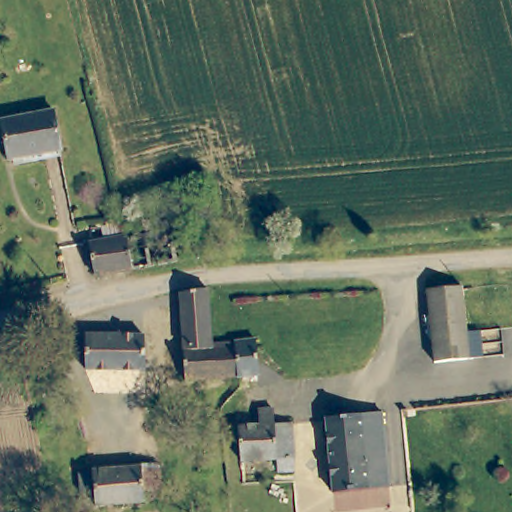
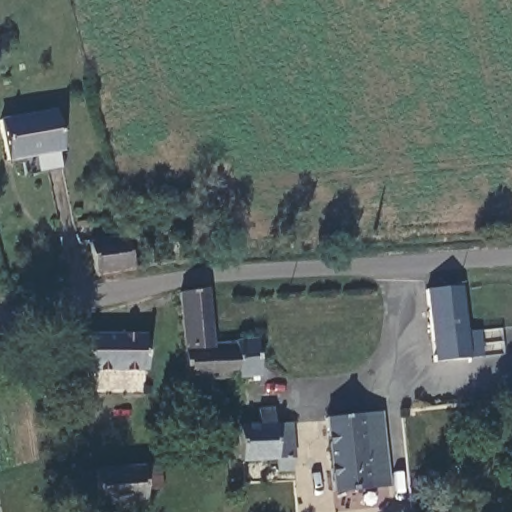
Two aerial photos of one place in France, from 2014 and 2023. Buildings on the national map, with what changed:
unchanged [(52,107),(61,147),(45,150),(4,159),(0,140),(0,118),(36,110),(52,107)]
unchanged [(120,235),(120,223),(127,220),(137,225),(137,234),(167,228),(172,254),(162,256),(163,262),(126,268),(120,235)]
unchanged [(126,268),(92,275),(87,243),(120,235),(126,268)]
unchanged [(458,286),(468,361),(433,366),(425,290),(458,286)]
unchanged [(179,330),(176,294),(205,291),(206,302),(209,327),(211,348),(235,345),(252,341),(256,375),(237,378),(209,382),(182,383),(180,350),(179,330)]
unchanged [(147,333),(146,367),(90,367),(91,332),(147,333)]
unchanged [(385,408),(388,462),(366,463),(366,450),(326,452),(324,415),(377,413),(377,408),(385,408)]
unchanged [(267,462),(241,464),(240,427),(261,426),(261,413),(276,412),(276,426),(292,426),(294,472),(278,473),(268,473),(267,462)]
unchanged [(390,488),(330,490),(326,452),(366,450),(366,463),(388,462),(390,488)]
unchanged [(86,468),(132,467),(132,458),(152,458),(154,502),(133,503),(86,504),(86,468)]

